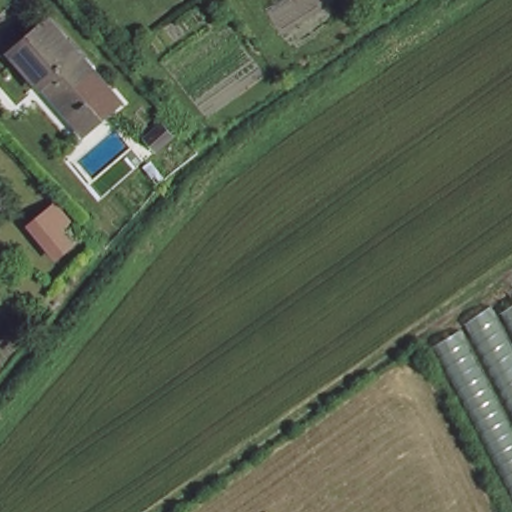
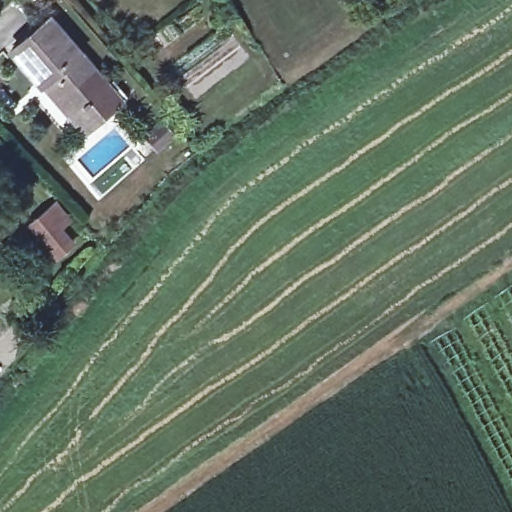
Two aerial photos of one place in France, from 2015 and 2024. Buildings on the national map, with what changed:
unchanged [(64,111),(38,77),(34,81),(7,46),(47,16),(100,83),(64,111)]
unchanged [(161,156),(178,145),(185,155),(169,167),(161,156)]
new [(50,203),(63,220),(52,228),(64,245),(48,256),(23,222),(50,203)]
new [(512,288),(512,494),(431,341),(512,288)]

